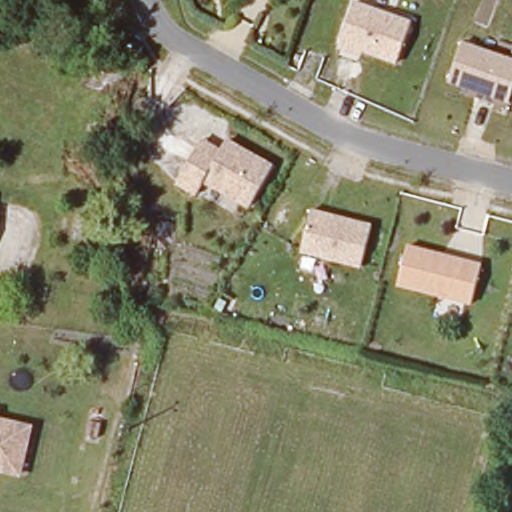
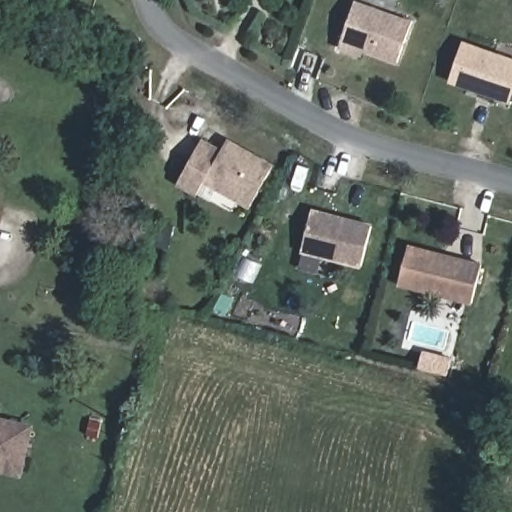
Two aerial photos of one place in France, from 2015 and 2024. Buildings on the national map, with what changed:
unchanged [(412,22),(397,65),(340,49),(357,3),(412,22)]
unchanged [(450,84),(465,41),(512,58),(512,96),(510,104),(450,84)]
unchanged [(270,173),(246,212),(201,185),(194,198),(175,187),(185,169),(199,146),(219,157),(225,147),(270,173)]
unchanged [(303,249),(315,209),(374,226),(362,266),(303,249)]
unchanged [(410,248),(482,269),(470,307),(398,286),(410,248)]
unchanged [(20,474),(0,469),(0,419),(31,427),(20,474)]

